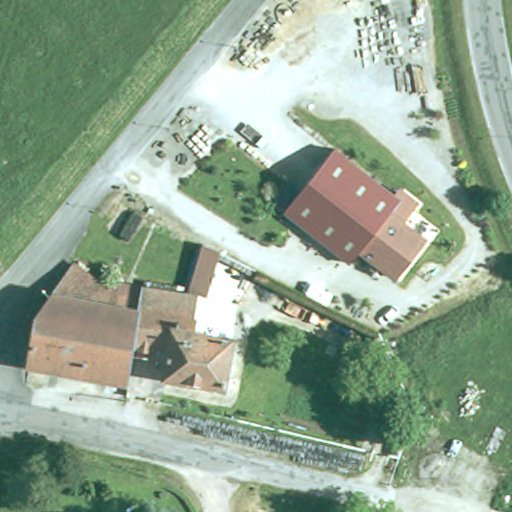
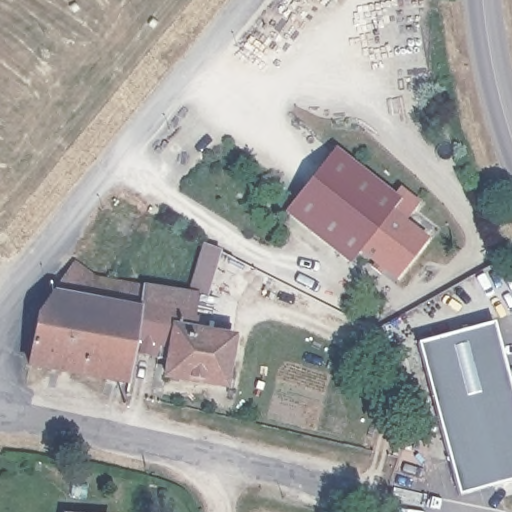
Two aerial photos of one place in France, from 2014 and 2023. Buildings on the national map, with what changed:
unchanged [(372,267),(376,261),(360,249),(350,262),(291,216),(285,210),(334,147),(341,153),(400,199),(390,211),(402,220),(425,239),(395,277),(390,272),(383,267),(379,272),(372,267)]
unchanged [(197,317),(196,333),(232,340),(223,386),(167,375),(170,360),(134,353),(140,324),(127,321),(133,309),(141,311),(144,288),(188,295),(195,271),(204,244),(217,249),(206,274),(201,297),(192,295),(189,316),(197,317)]
unchanged [(29,364),(37,319),(59,288),(70,272),(144,288),(141,311),(133,309),(127,321),(140,324),(134,353),(130,382),(29,364)]
new [(512,482),(458,497),(416,344),(493,323),(512,392),(512,482)]

